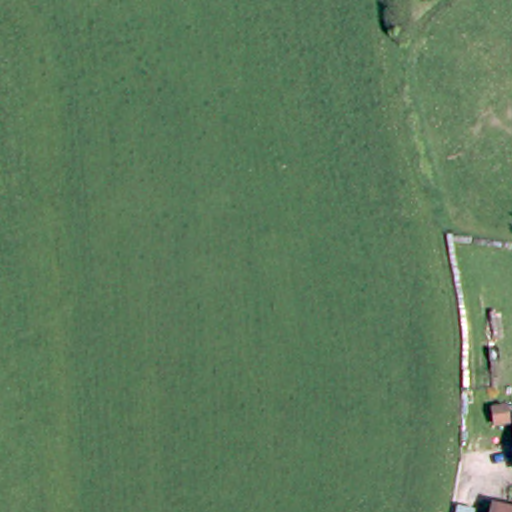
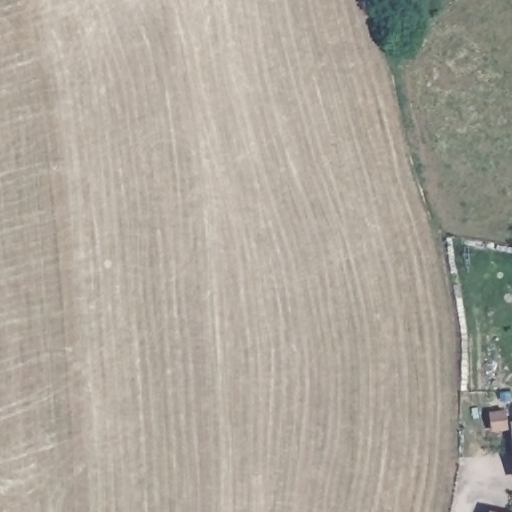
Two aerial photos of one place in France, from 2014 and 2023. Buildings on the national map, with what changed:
unchanged [(499,506),(512,509),(512,512),(497,512),(499,506)]

